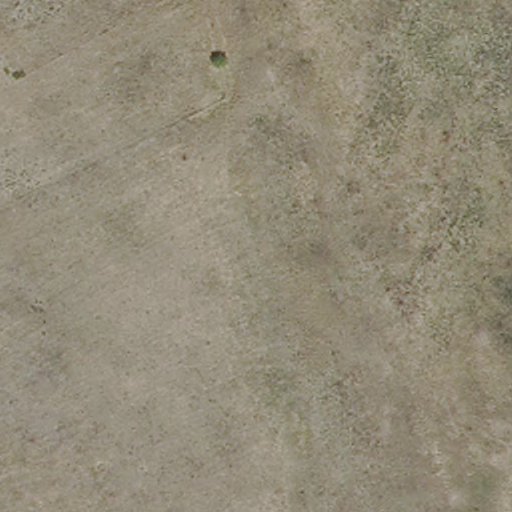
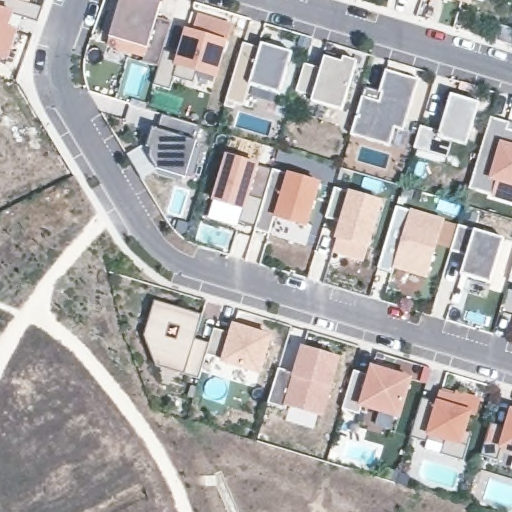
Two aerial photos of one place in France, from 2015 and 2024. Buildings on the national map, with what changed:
new [(27,3),(42,7),(37,21),(23,17),(19,29),(8,61),(0,61),(0,0),(16,0),(27,3)]
new [(16,0),(28,0),(27,3),(16,0)]
new [(121,0),(148,0),(161,3),(156,18),(171,22),(163,50),(158,67),(143,63),(145,56),(107,45),(121,0)]
new [(470,3),(459,0),(471,0),(470,3)]
new [(158,67),(163,50),(179,55),(186,31),(193,33),(198,17),(230,26),(215,77),(197,72),(193,84),(173,78),(170,90),(152,85),(158,67)]
new [(227,100),(243,43),(260,48),(261,44),(292,53),(280,95),(250,86),(245,106),(235,104),(234,109),(225,106),(227,100)]
new [(321,69),(325,57),(326,52),(340,57),(356,61),(342,111),(311,101),(312,97),(296,92),(304,64),(321,69)]
new [(379,92),(380,87),(385,70),(418,80),(403,131),(394,129),(389,147),(350,135),(365,87),(379,92)]
new [(420,126),(440,132),(450,95),(479,103),(466,146),(452,142),(447,158),(413,148),(420,126)]
new [(152,128),(157,129),(161,114),(180,120),(201,126),(185,178),(155,169),(148,157),(151,149),(146,147),(152,128)]
new [(508,123),(506,129),(512,131),(512,202),(491,196),(469,189),(473,174),(490,117),(508,123)]
new [(226,157),(272,170),(263,201),(247,197),(244,209),(213,201),(226,157)]
new [(263,201),(272,170),(318,183),(306,226),(275,217),(269,235),(255,231),(263,201)]
new [(335,189),(380,202),(367,247),(336,238),(341,223),(325,218),(335,189)]
new [(394,268),(392,272),(378,268),(395,208),(411,212),(412,209),(444,219),(427,278),(394,268)]
new [(458,225),(504,239),(490,284),(460,275),(466,256),(450,251),(458,225)]
new [(512,278),(510,277),(512,271),(512,278)]
new [(202,316),(197,333),(195,340),(210,344),(206,355),(199,380),(155,367),(143,337),(154,301),(202,316)]
new [(210,344),(214,329),(231,334),(233,326),(270,337),(259,373),(223,363),(223,360),(206,355),(210,344)]
new [(295,374),(296,372),(298,365),(303,348),(339,359),(321,416),(287,405),(285,409),(268,404),(279,369),(295,374)]
new [(353,371),(370,376),(372,368),(410,379),(399,418),(361,406),(359,415),(342,410),(353,371)]
new [(427,442),(410,437),(422,398),(437,403),(440,393),(455,397),(457,393),(479,400),(475,415),(470,413),(465,431),(471,433),(463,461),(440,454),(443,445),(427,440),(427,442)]
new [(506,428),(511,411),(512,411),(512,452),(500,449),(497,461),(480,456),(490,424),(506,428)]

